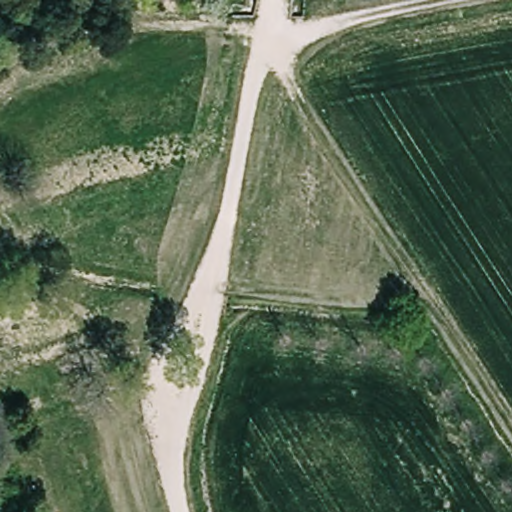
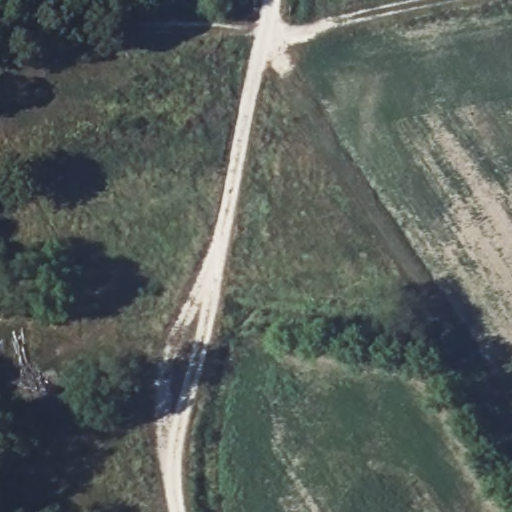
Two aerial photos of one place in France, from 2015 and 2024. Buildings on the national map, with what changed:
[]

